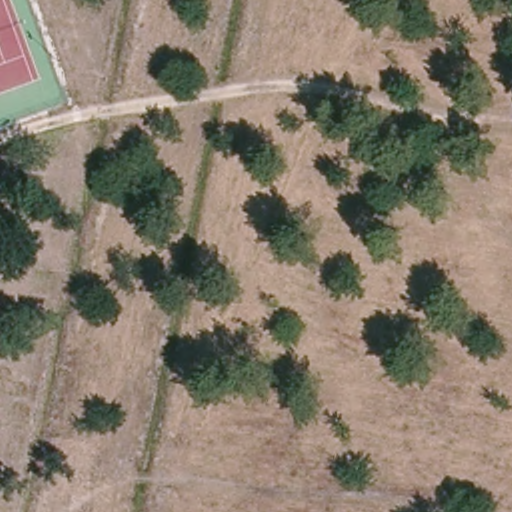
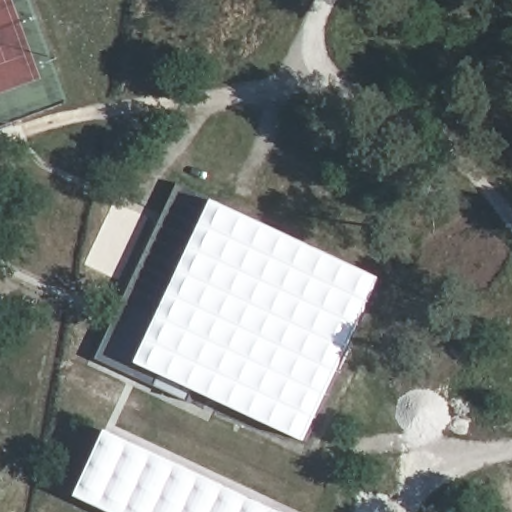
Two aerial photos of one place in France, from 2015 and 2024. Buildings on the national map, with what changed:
new [(390,282),(309,454),(106,358),(185,189),(390,282)]
new [(111,512),(80,498),(111,433),(288,512),(111,512)]

